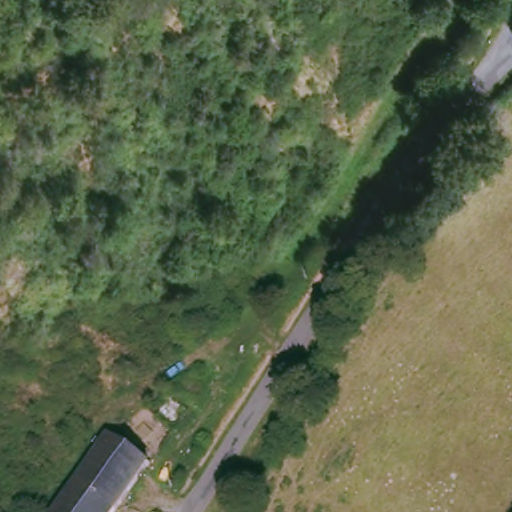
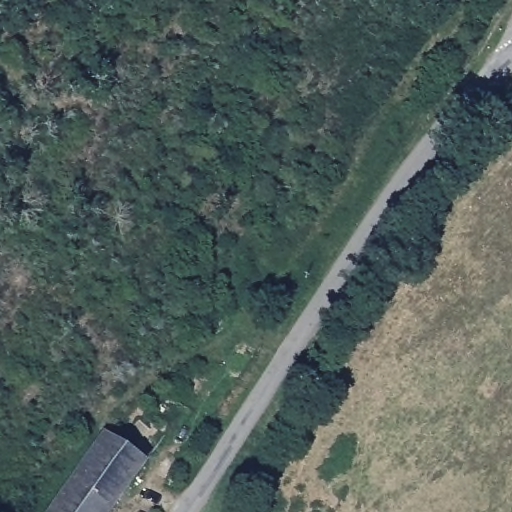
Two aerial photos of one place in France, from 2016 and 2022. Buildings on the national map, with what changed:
unchanged [(109,421),(153,452),(111,512),(45,512),(109,421)]

